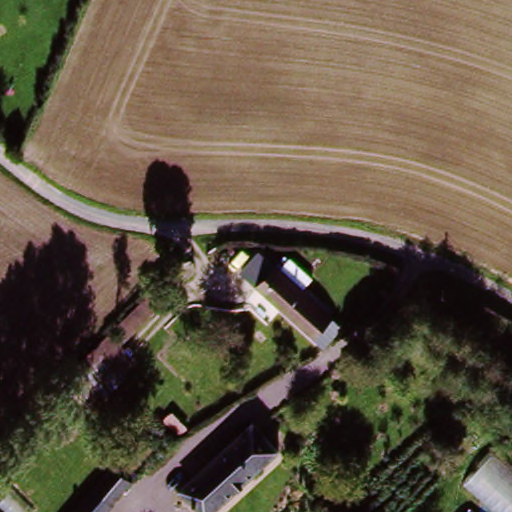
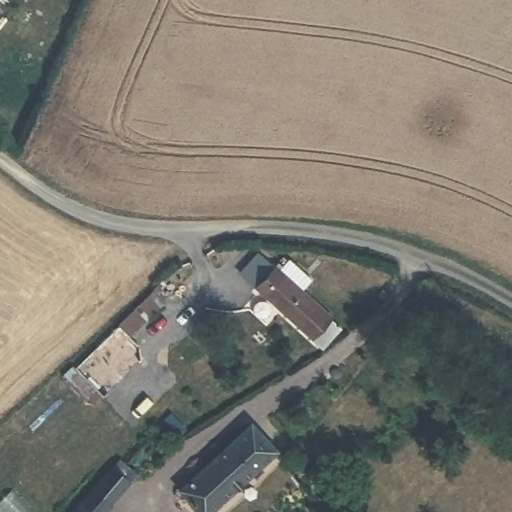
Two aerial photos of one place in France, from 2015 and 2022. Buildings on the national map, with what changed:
unchanged [(257,253),(340,326),(319,351),(306,339),(239,278),(257,253)]
unchanged [(93,408),(62,376),(109,334),(140,364),(93,408)]
unchanged [(210,512),(197,512),(177,496),(241,424),(267,447),(210,512)]
demolished [(496,512),(455,475),(485,445),(512,469),(512,512),(496,512)]
unchanged [(132,486),(106,512),(70,512),(112,468),(132,486)]

